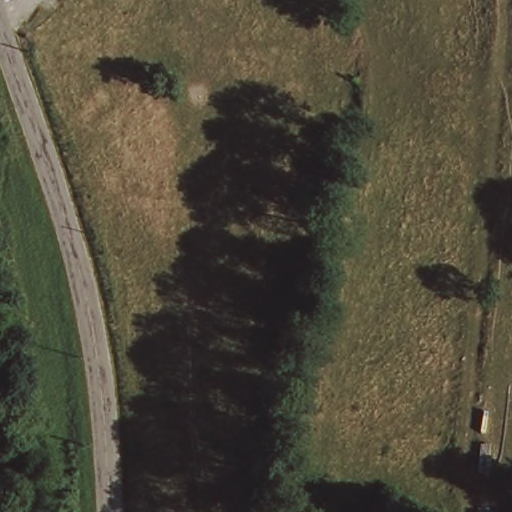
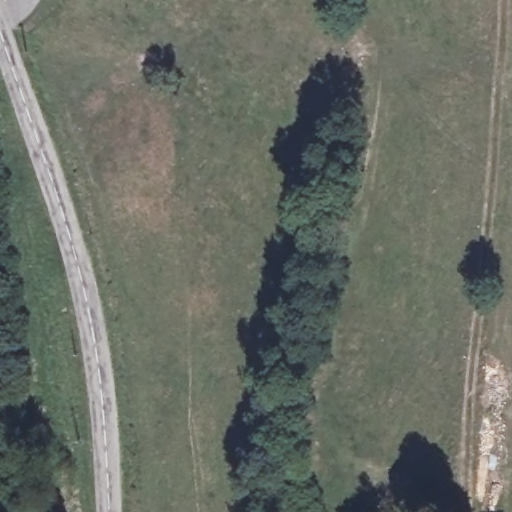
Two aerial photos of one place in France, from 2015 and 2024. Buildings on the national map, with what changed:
[]

